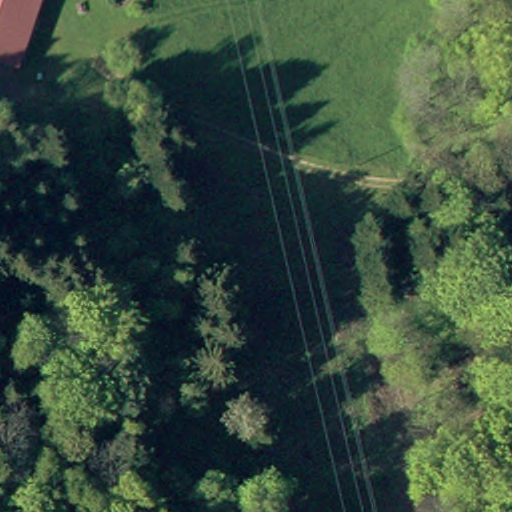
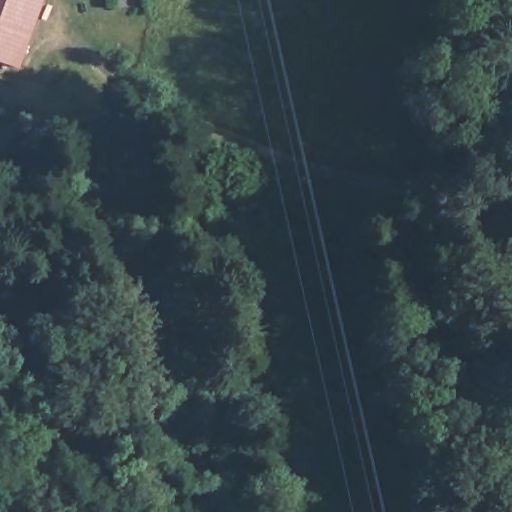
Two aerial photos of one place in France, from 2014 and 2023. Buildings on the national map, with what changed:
unchanged [(0,68),(0,0),(42,0),(42,2),(22,56),(16,74),(0,68)]

